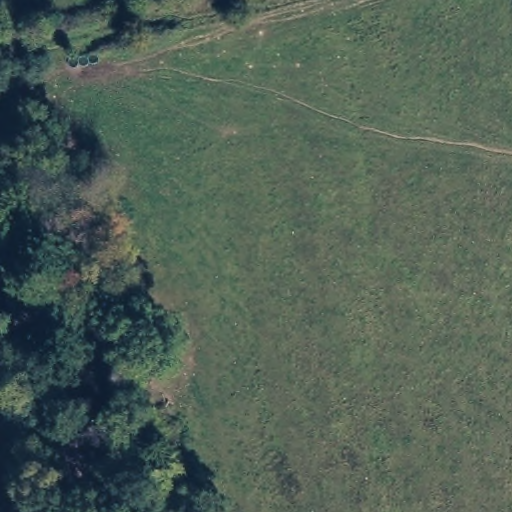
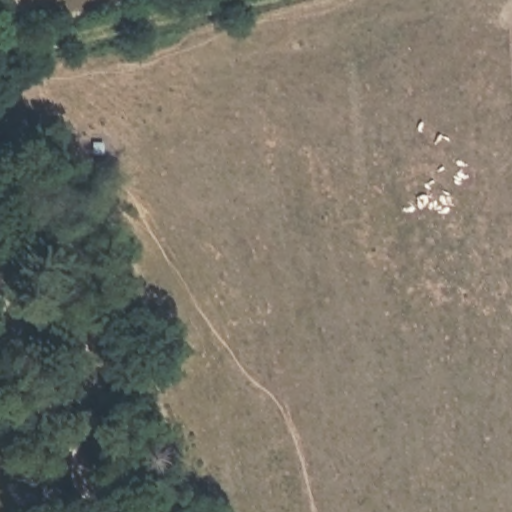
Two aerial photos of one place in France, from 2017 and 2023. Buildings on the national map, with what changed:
unchanged [(65,342),(62,338),(64,335),(64,332),(74,312),(85,330),(88,337),(85,336),(87,347),(77,354),(75,353),(72,357),(65,342)]

